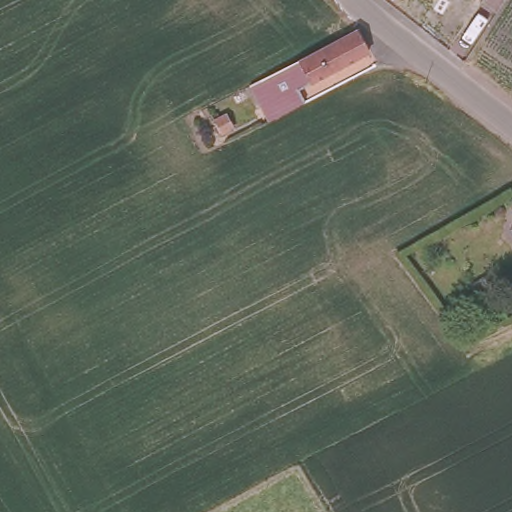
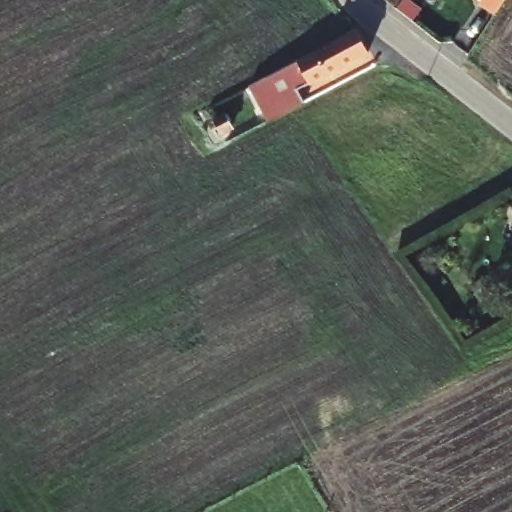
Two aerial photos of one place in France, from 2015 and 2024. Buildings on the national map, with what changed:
unchanged [(482,1),(482,0),(504,0),(497,10),(482,1)]
unchanged [(367,52),(298,90),(304,102),(266,121),(248,86),(356,30),(367,52)]
unchanged [(234,129),(221,135),(214,120),(226,114),(234,129)]

